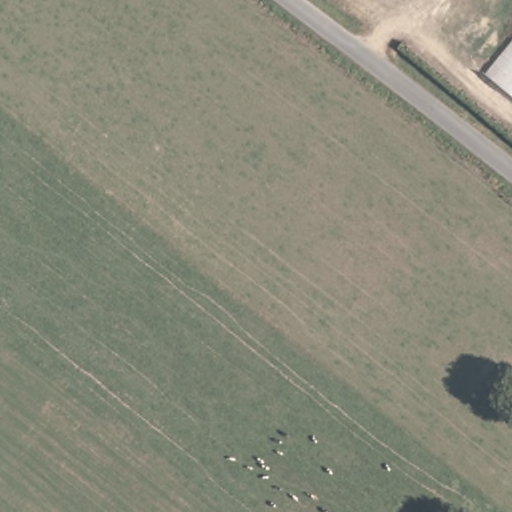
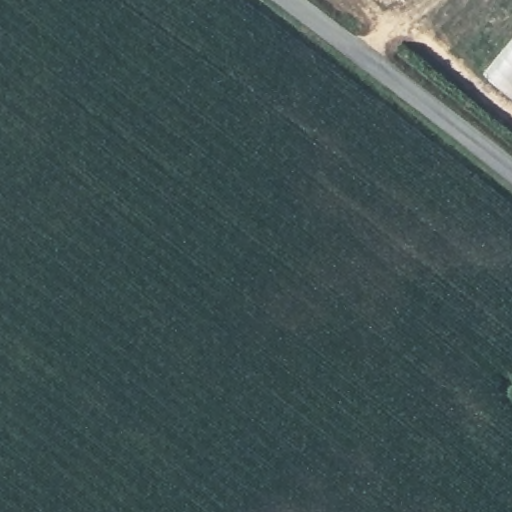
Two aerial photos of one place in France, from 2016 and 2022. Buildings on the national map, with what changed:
unchanged [(486,72),(512,40),(512,93),(486,72)]

